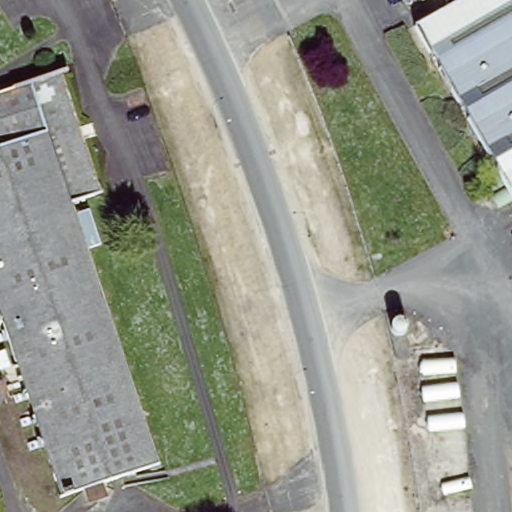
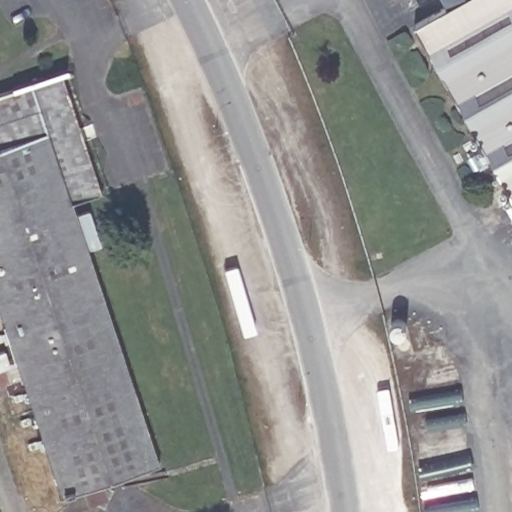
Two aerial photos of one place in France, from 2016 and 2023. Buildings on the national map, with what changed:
unchanged [(415,27),(443,10),(437,0),(512,0),(512,194),(511,193),(415,27)]
unchanged [(423,4),(421,0),(430,0),(423,4)]
unchanged [(53,69),(96,188),(64,199),(155,459),(61,492),(0,321),(0,87),(53,69)]

